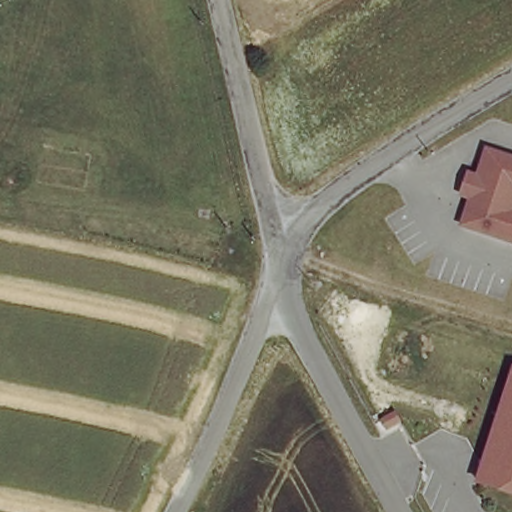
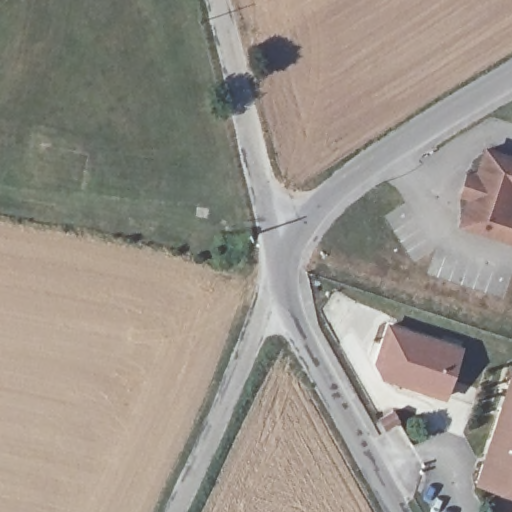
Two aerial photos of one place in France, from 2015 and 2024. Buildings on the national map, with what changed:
unchanged [(461,221),(469,195),(461,191),(470,167),(479,169),(489,144),(512,153),(512,237),(461,221)]
new [(385,376),(378,364),(391,326),(462,349),(446,397),(385,376)]
unchanged [(512,367),(512,493),(475,481),(512,367)]

